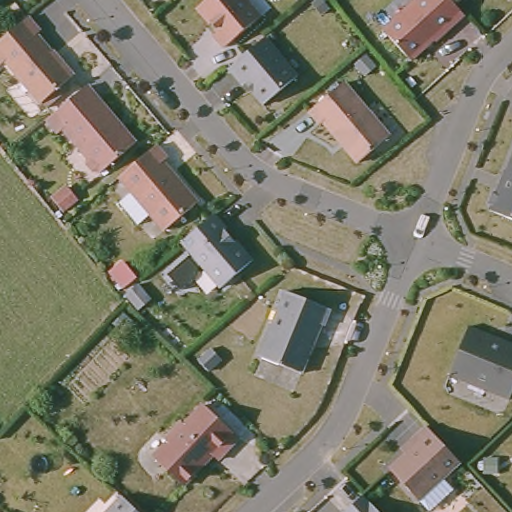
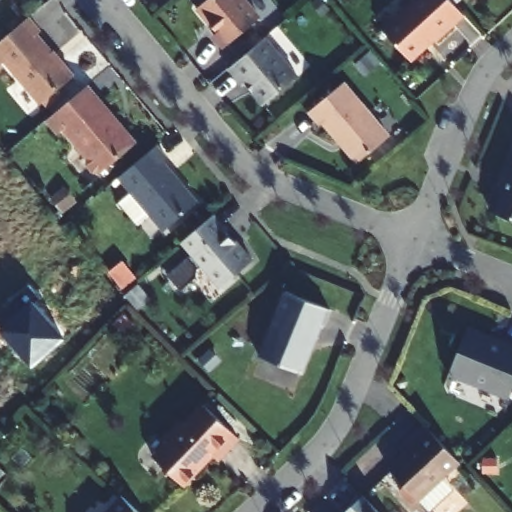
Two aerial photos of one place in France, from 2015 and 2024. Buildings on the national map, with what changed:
unchanged [(259,13),(224,43),(213,31),(217,27),(197,4),(202,0),(248,0),(259,13)]
unchanged [(435,42),(433,40),(410,61),(383,31),(416,0),(450,0),(464,15),(435,42)]
unchanged [(44,27),(41,30),(59,51),(61,55),(63,53),(78,71),(46,98),(10,56),(2,63),(0,61),(0,41),(33,13),(44,27)]
unchanged [(269,33),(301,71),(268,100),(259,89),(260,78),(251,77),(248,81),(233,63),(269,33)]
unchanged [(343,78),(389,132),(358,158),(323,117),(319,119),(309,107),(343,78)]
unchanged [(91,81),(123,118),(123,119),(122,120),(125,124),(126,124),(128,124),(140,139),(105,168),(104,167),(98,166),(91,159),(92,152),(68,124),(63,129),(51,115),(91,81)]
unchanged [(150,209),(137,220),(123,203),(121,205),(116,200),(118,198),(131,187),(118,172),(156,141),(166,153),(162,157),(197,198),(164,226),(150,209)]
unchanged [(491,206),(491,205),(489,199),(493,188),(499,185),(503,176),(512,153),(512,215),(491,206)]
unchanged [(214,215),(226,229),(224,231),(234,242),(236,241),(253,261),(221,288),(181,242),(214,215)]
new [(32,367),(0,331),(0,330),(2,328),(0,325),(0,311),(29,285),(39,297),(33,300),(65,338),(32,367)]
unchanged [(286,291),(329,309),(323,326),(321,325),(301,373),(259,357),(286,291)]
unchanged [(469,326),(468,329),(473,331),(499,342),(500,339),(512,345),(512,391),(509,400),(508,399),(509,397),(486,387),(450,373),(449,376),(448,375),(468,326),(469,326)]
unchanged [(168,438),(164,434),(181,417),(184,420),(203,400),(238,433),(218,455),(212,450),(183,481),(153,452),(168,438)]
unchanged [(434,436),(450,452),(459,463),(419,501),(394,474),(389,469),(414,444),(411,440),(426,426),(434,436)]
unchanged [(120,487),(121,486),(148,512),(99,512),(121,488),(120,487)]
unchanged [(368,490),(372,495),(388,512),(347,512),(346,510),(368,490)]

